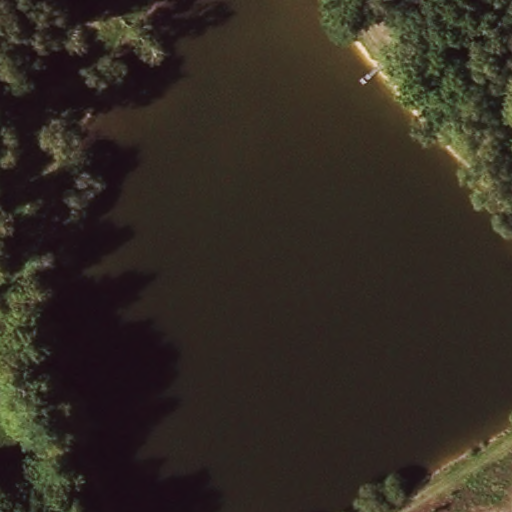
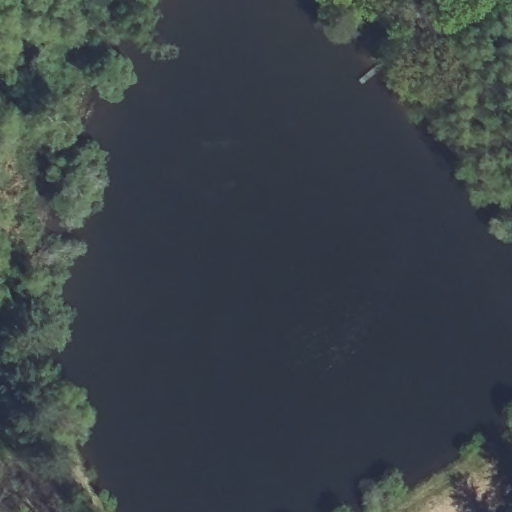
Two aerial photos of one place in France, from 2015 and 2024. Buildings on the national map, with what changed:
unchanged [(434,4),(430,0),(462,0),(464,2),(451,11),(444,17),(434,4)]

